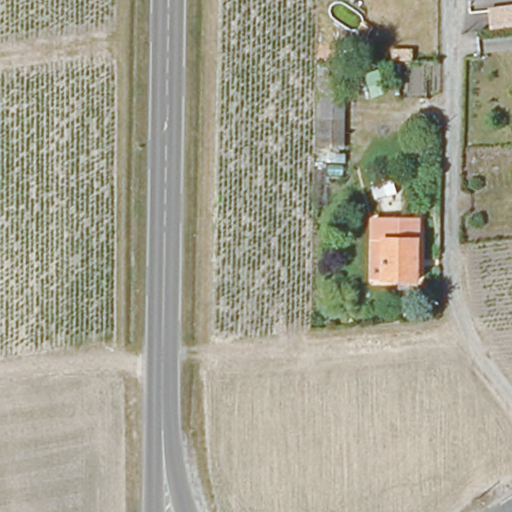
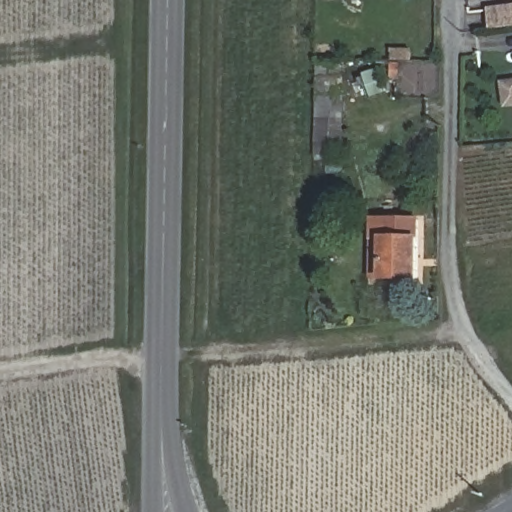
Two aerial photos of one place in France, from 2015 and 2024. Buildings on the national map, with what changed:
unchanged [(320,88),(335,88),(335,101),(343,101),(342,153),(319,153),(320,88)]
unchanged [(373,241),(373,221),(423,221),(422,278),(386,278),(372,278),(373,241)]

